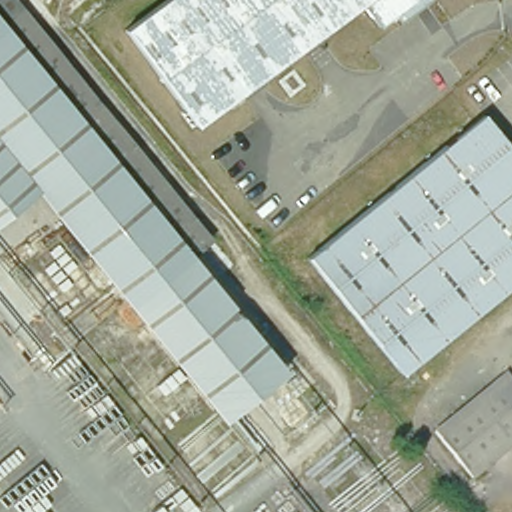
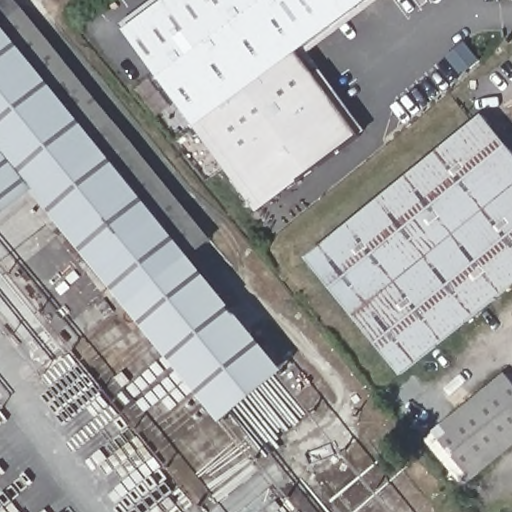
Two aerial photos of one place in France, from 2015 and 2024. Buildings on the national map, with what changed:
unchanged [(223,424),(32,189),(0,216),(0,0),(17,0),(307,356),(223,424)]
unchanged [(428,0),(383,33),(364,9),(302,55),(201,132),(130,34),(176,0),(428,0)]
new [(302,55),(361,135),(258,211),(201,132),(302,55)]
unchanged [(484,116),(512,151),(512,285),(401,375),(307,259),(484,116)]
unchanged [(433,431),(506,373),(512,381),(512,443),(470,476),(433,431)]

